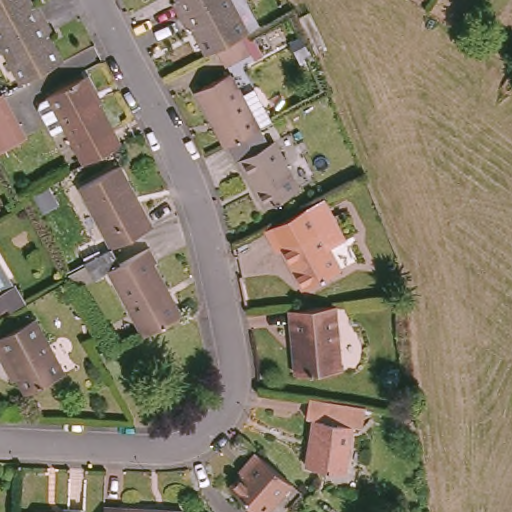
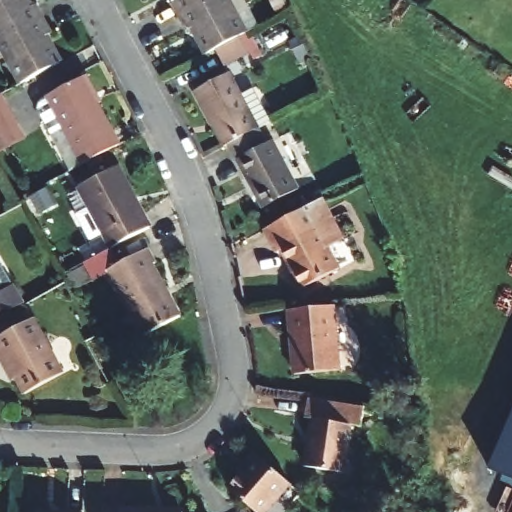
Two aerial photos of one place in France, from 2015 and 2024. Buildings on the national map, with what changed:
unchanged [(0,0),(34,0),(35,1),(36,0),(44,0),(50,10),(57,24),(50,29),(65,56),(64,56),(38,71),(27,77),(4,36),(0,28),(0,0)]
unchanged [(198,0),(179,10),(174,0),(198,0)]
unchanged [(216,42),(207,47),(193,20),(186,24),(179,10),(198,0),(231,0),(245,26),(243,27),(251,43),(225,59),(216,42)]
unchanged [(229,141),(199,85),(232,67),(261,122),(229,141)]
unchanged [(83,70),(122,136),(87,157),(49,91),(83,70)]
unchanged [(23,132),(0,145),(0,103),(5,100),(23,132)]
unchanged [(300,182),(265,200),(240,153),(273,135),(300,182)]
unchanged [(122,160),(148,207),(145,209),(151,222),(115,243),(81,184),(122,160)]
unchanged [(324,251),(334,269),(302,287),(280,249),(275,251),(264,230),(322,200),(343,241),(324,251)]
unchanged [(161,265),(158,267),(185,315),(153,332),(117,267),(98,277),(90,262),(115,248),(123,263),(152,247),(161,265)]
unchanged [(15,296),(0,304),(0,284),(7,280),(15,296)]
unchanged [(299,368),(293,306),(336,302),(342,365),(299,368)]
unchanged [(64,370),(27,390),(13,363),(8,366),(0,351),(0,336),(36,317),(64,370)]
unchanged [(350,434),(341,482),(303,476),(312,427),(305,426),(308,407),(366,417),(362,437),(350,434)]
new [(490,472),(512,421),(512,481),(490,472)]
unchanged [(223,483),(241,461),(238,458),(247,447),(295,487),(276,512),(259,512),(223,483)]
unchanged [(179,512),(103,512),(103,502),(179,506),(179,512)]
unchanged [(83,508),(83,512),(44,512),(45,507),(83,508)]
unchanged [(1,512),(0,512),(0,510),(1,510),(1,512)]

